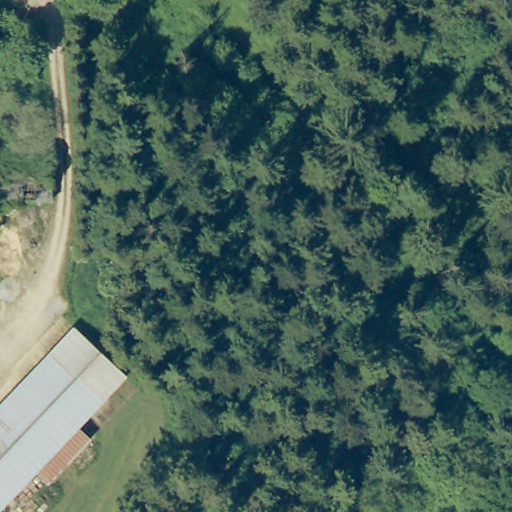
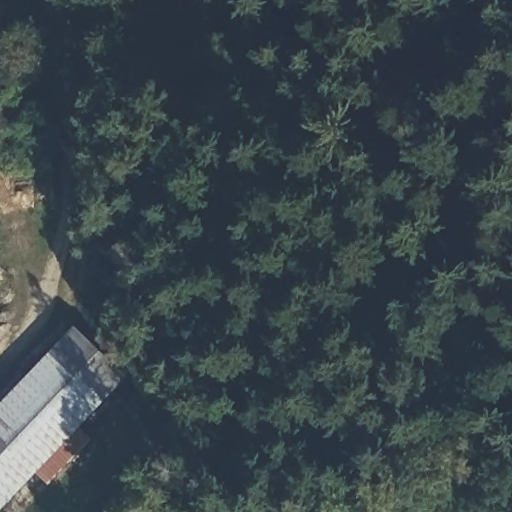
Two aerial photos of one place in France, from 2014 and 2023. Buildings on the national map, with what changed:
unchanged [(0,154),(49,150),(57,192),(55,199),(0,205),(0,154)]
unchanged [(7,227),(5,234),(0,239),(0,240),(0,217),(4,220),(7,227)]
unchanged [(125,313),(101,311),(105,241),(129,243),(125,313)]
unchanged [(111,363),(127,378),(80,427),(37,474),(32,479),(1,512),(0,512),(0,425),(36,386),(83,336),(111,363)]
unchanged [(0,393),(21,371),(36,386),(0,425),(0,393)]
unchanged [(98,445),(55,490),(55,491),(54,490),(37,474),(80,427),(98,445)]

